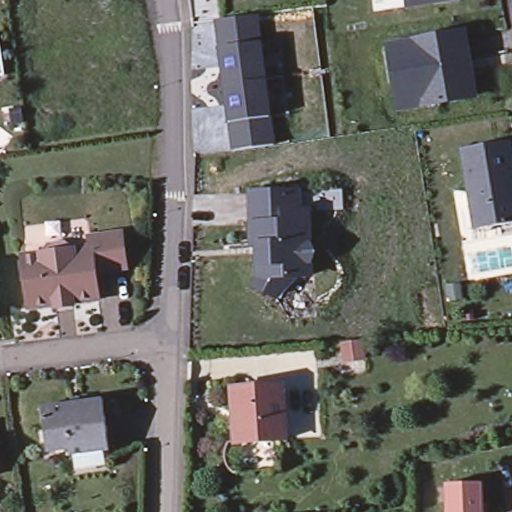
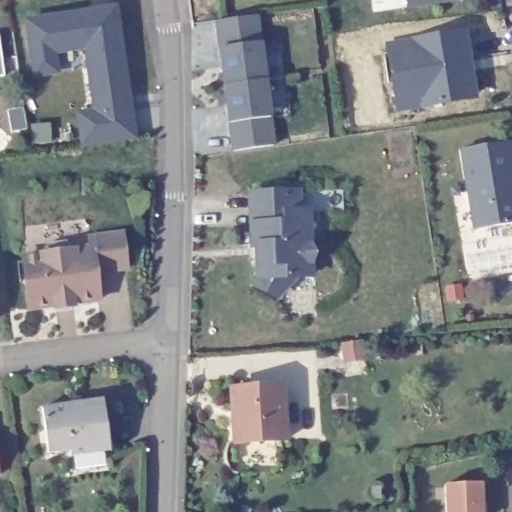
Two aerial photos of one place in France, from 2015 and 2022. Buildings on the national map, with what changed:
unchanged [(414,0),(424,0),(415,1),(414,0)]
new [(137,139),(81,147),(74,111),(91,108),(83,50),(57,54),(60,74),(33,78),(23,18),(117,4),(137,139)]
unchanged [(228,123),(220,53),(216,24),(257,19),(261,44),(270,115),(273,145),(232,151),(228,123)]
unchanged [(440,35),(462,31),(474,90),(465,95),(449,98),(440,35)]
unchanged [(389,44),(440,35),(449,98),(430,101),(399,106),(396,87),(389,44)]
unchanged [(3,73),(0,73),(0,53),(3,73)]
unchanged [(20,106),(22,121),(11,123),(9,108),(20,106)]
unchanged [(510,139),(512,148),(512,219),(483,224),(480,204),(472,204),(463,147),(510,139)]
unchanged [(250,192),(282,190),(284,210),(306,209),(309,274),(287,274),(276,295),(255,284),(260,275),(258,244),(253,245),(250,192)]
unchanged [(52,307),(51,304),(27,307),(22,255),(40,253),(41,250),(46,244),(49,242),(65,240),(73,247),(74,249),(91,247),(90,238),(108,235),(122,234),(126,268),(112,269),(95,272),(98,298),(75,301),(73,304),(55,307),(52,307)]
unchanged [(229,388),(288,383),(294,434),(233,441),(231,419),(230,406),(229,388)]
unchanged [(38,407),(99,398),(106,449),(67,454),(65,449),(44,452),(38,407)]
unchanged [(445,484),(455,484),(481,483),(483,512),(446,512),(445,484)]

